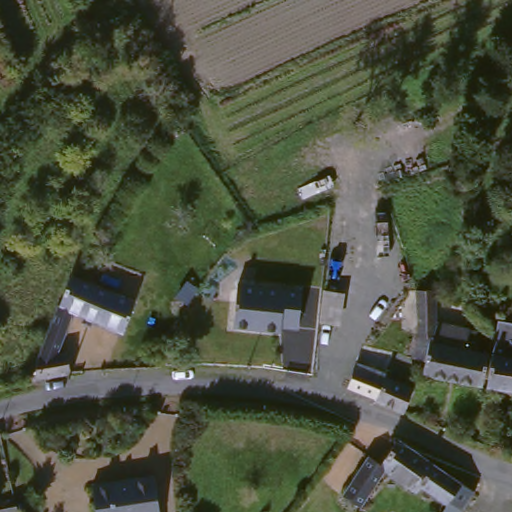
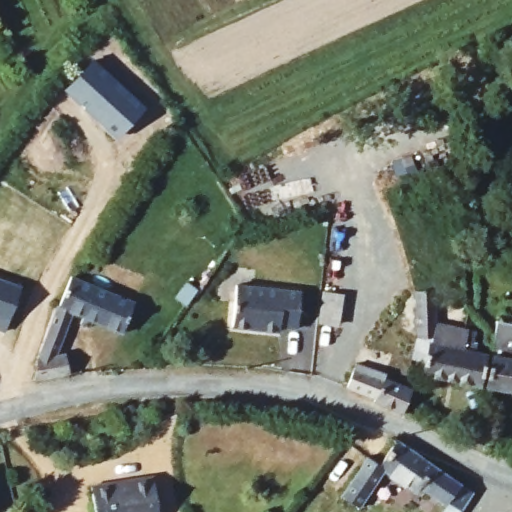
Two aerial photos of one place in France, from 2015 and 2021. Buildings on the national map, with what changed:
new [(98,65),(149,113),(121,142),(70,94),(98,65)]
unchanged [(140,302),(128,332),(98,320),(95,327),(86,323),(88,316),(78,312),(63,355),(71,353),(75,374),(68,375),(39,380),(43,360),(43,358),(60,314),(63,305),(64,306),(78,275),(83,277),(140,302)]
new [(8,332),(0,330),(0,280),(23,288),(8,332)]
unchanged [(176,296),(184,284),(198,292),(196,295),(189,305),(176,296)]
unchanged [(471,336),(481,338),(479,346),(493,349),(486,380),(428,368),(430,355),(418,353),(423,331),(420,285),(439,285),(440,317),(473,324),(471,336)]
unchanged [(300,299),(296,335),(278,332),(278,337),(231,331),(236,291),(300,299)]
unchanged [(173,310),(177,305),(185,311),(184,312),(182,316),(173,310)]
unchanged [(491,380),(496,350),(500,330),(503,315),(512,316),(512,384),(491,380)]
unchanged [(418,388),(408,413),(380,401),(381,399),(352,388),(361,363),(391,373),(390,377),(418,388)]
unchanged [(439,460),(480,487),(468,507),(453,497),(451,500),(424,482),(420,488),(389,466),(365,503),(346,490),(373,451),(385,460),(402,435),(439,460)]
unchanged [(159,471),(166,512),(102,512),(98,481),(159,471)]
unchanged [(23,512),(0,512),(0,506),(20,502),(23,512)]

